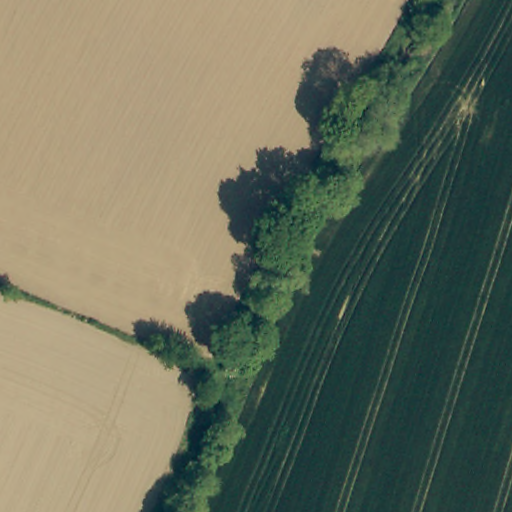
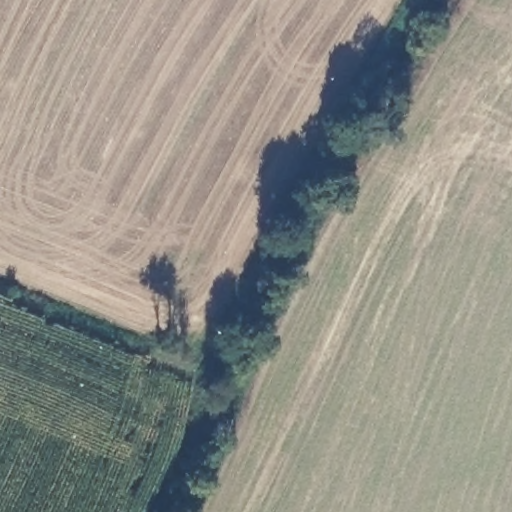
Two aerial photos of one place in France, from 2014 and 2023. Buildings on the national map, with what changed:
[]

